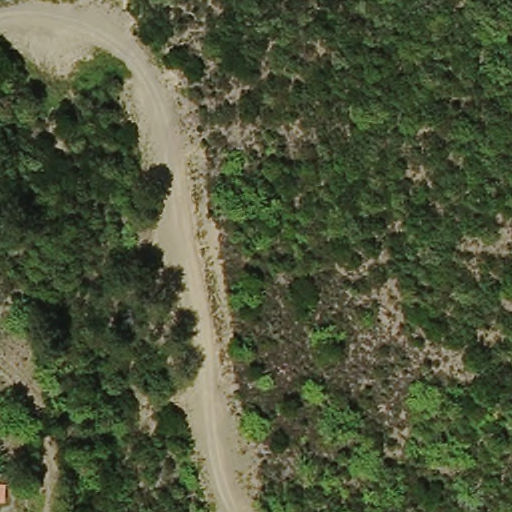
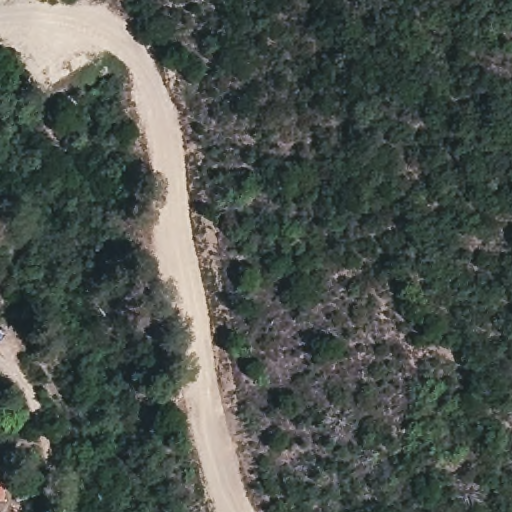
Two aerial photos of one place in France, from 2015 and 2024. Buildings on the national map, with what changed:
unchanged [(10,505),(0,504),(0,484),(9,487),(10,505)]

